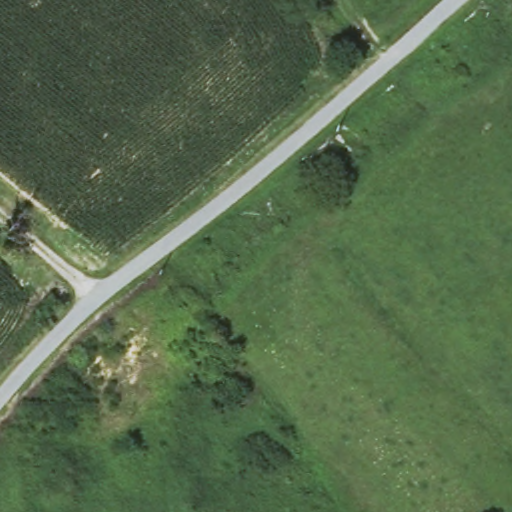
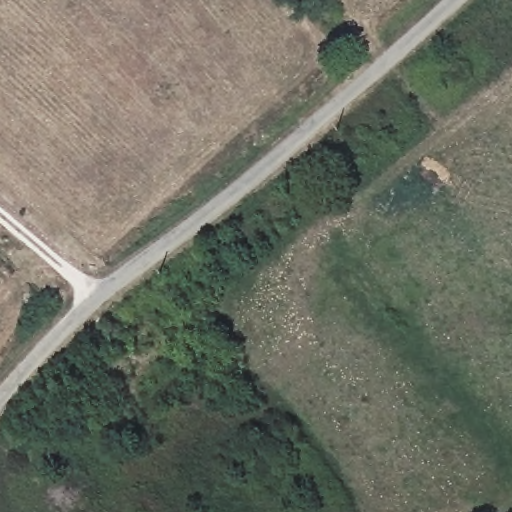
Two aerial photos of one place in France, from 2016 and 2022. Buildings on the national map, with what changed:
unchanged [(145,326),(123,346),(108,362),(82,341),(118,304),(145,326)]
unchanged [(113,429),(80,397),(107,374),(138,402),(113,429)]
unchanged [(48,381),(73,403),(60,415),(53,423),(30,401),(48,381)]

